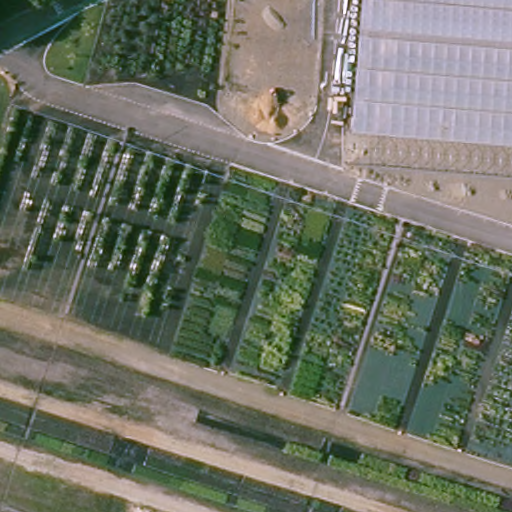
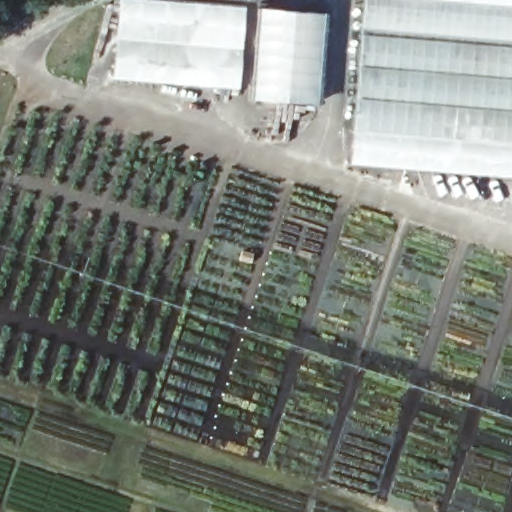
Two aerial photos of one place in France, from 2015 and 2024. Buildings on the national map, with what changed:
new [(119,0),(175,0),(247,5),(240,89),(184,86),(113,78),(119,0)]
unchanged [(456,141),(354,136),(360,0),(512,0),(512,143),(456,141)]
new [(251,98),(257,7),(322,12),(316,103),(251,98)]
new [(352,164),(354,136),(456,141),(512,143),(512,175),(352,164)]

